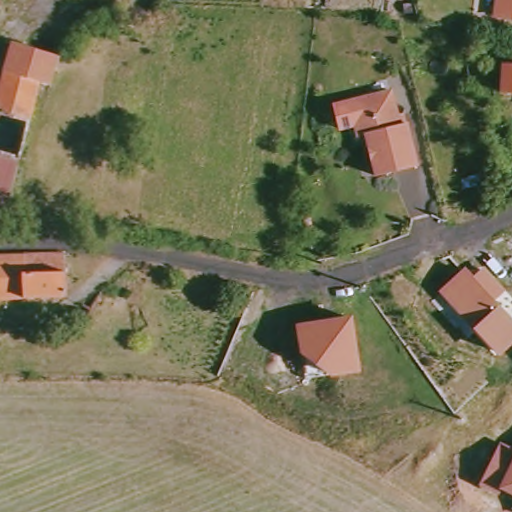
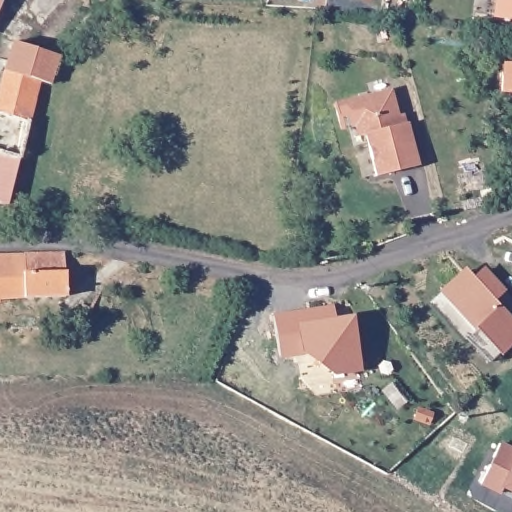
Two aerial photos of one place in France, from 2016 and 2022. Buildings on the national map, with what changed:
unchanged [(0,4),(0,0),(2,0),(0,4)]
unchanged [(497,0),(512,0),(512,17),(495,15),(497,0)]
unchanged [(0,116),(0,71),(7,46),(36,55),(53,59),(46,89),(32,86),(23,123),(0,116)]
unchanged [(400,123),(398,124),(400,133),(408,131),(413,149),(419,174),(378,184),(371,158),(367,141),(365,133),(364,133),(356,128),(349,100),(371,94),(391,89),(400,123)]
unchanged [(0,205),(0,152),(14,156),(1,206),(0,205)]
unchanged [(63,256),(65,299),(0,300),(0,257),(63,256)]
unchanged [(512,335),(496,349),(442,288),(459,273),(512,330),(512,335)]
unchanged [(300,352),(297,324),(351,316),(360,373),(331,377),(305,378),(300,352)]
unchanged [(512,495),(500,489),(498,494),(478,486),(500,443),(512,448),(512,495)]

